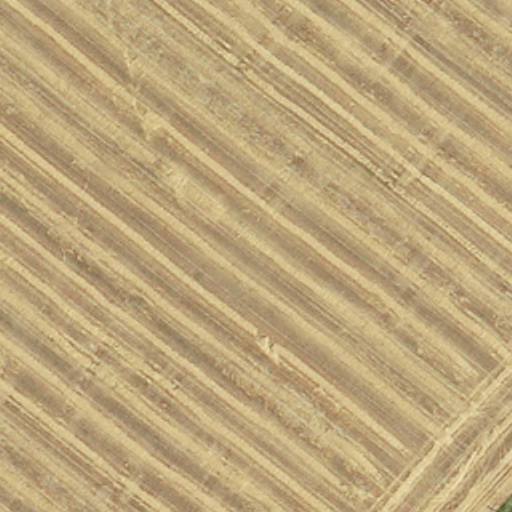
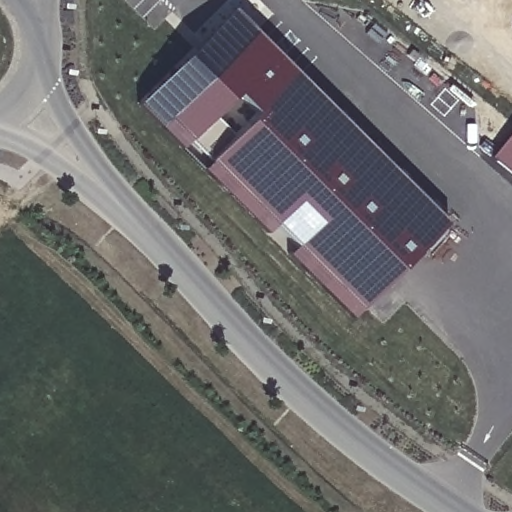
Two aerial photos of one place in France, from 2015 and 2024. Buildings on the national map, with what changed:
new [(366,308),(151,95),(239,6),(454,220),(366,308)]

